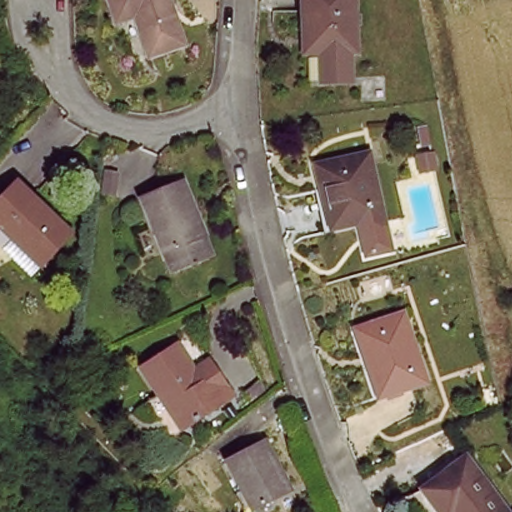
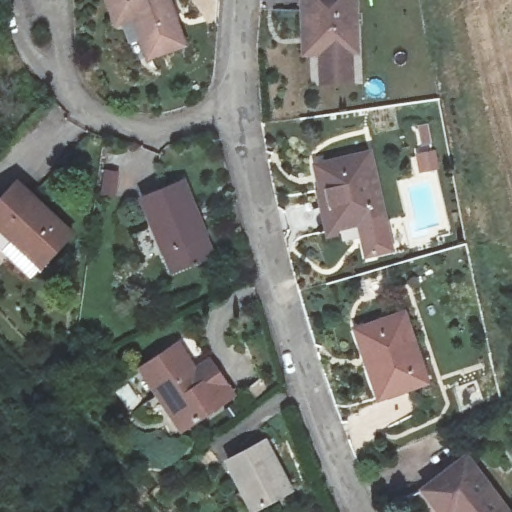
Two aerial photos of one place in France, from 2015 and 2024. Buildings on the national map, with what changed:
unchanged [(147,61),(135,19),(122,21),(117,0),(169,0),(185,51),(147,61)]
unchanged [(312,50),(311,20),(318,19),(318,11),(302,9),(302,0),(353,0),(354,50),(312,50)]
unchanged [(0,94),(0,89),(2,93),(0,94)]
unchanged [(375,150),(386,210),(335,221),(327,181),(322,182),(317,158),(375,150)]
unchanged [(35,277),(0,242),(0,206),(20,184),(73,238),(35,277)]
unchanged [(212,250),(170,265),(150,212),(192,194),(212,250)]
unchanged [(425,376),(385,392),(370,348),(360,349),(353,324),(402,309),(425,376)]
unchanged [(205,383),(221,374),(235,396),(183,431),(142,369),(180,344),(205,383)]
unchanged [(293,496),(260,512),(256,512),(233,464),(268,447),(293,496)]
unchanged [(505,512),(436,512),(424,493),(467,461),(505,512)]

